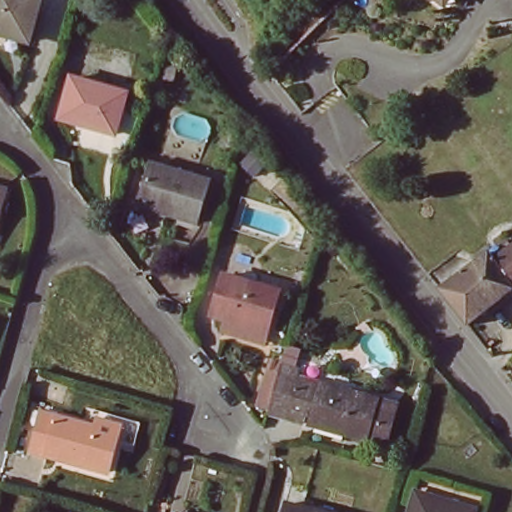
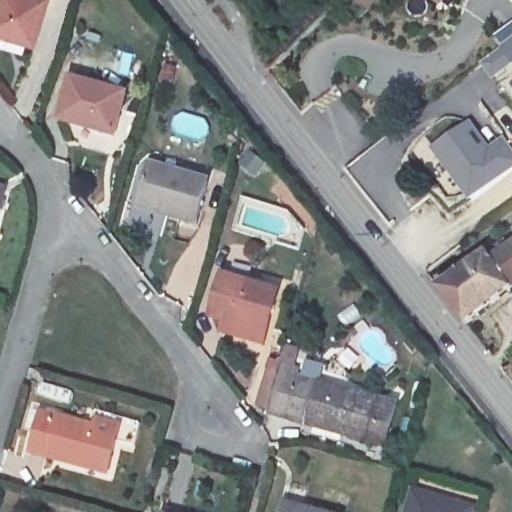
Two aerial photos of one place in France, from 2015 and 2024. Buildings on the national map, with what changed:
unchanged [(0,33),(0,0),(39,0),(29,41),(0,33)]
unchanged [(438,0),(452,0),(447,6),(447,7),(438,0)]
new [(512,43),(512,65),(494,81),(482,65),(505,49),(512,43)]
unchanged [(128,93),(118,133),(61,117),(71,77),(128,93)]
new [(493,149),(506,138),(512,146),(512,171),(471,202),(433,151),(474,122),(493,149)]
unchanged [(208,182),(197,221),(144,206),(155,167),(208,182)]
unchanged [(1,197),(0,201),(0,197),(1,197)]
unchanged [(492,255),(498,261),(512,250),(512,297),(473,330),(445,293),(492,255)]
unchanged [(281,294),(269,336),(215,321),(228,278),(281,294)]
unchanged [(317,380),(305,421),(285,415),(297,375),(317,380)]
unchanged [(397,406),(386,445),(310,423),(322,384),(397,406)]
unchanged [(39,450),(50,413),(90,423),(111,428),(109,436),(101,466),(39,450)]
unchanged [(474,510),(473,512),(409,512),(414,495),(474,510)]
unchanged [(322,512),(281,512),(284,501),(322,512)]

